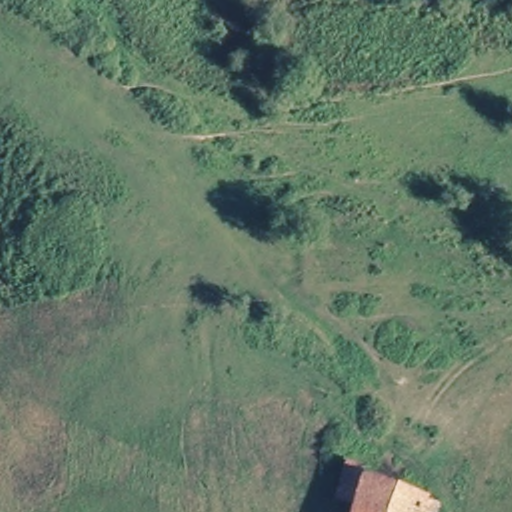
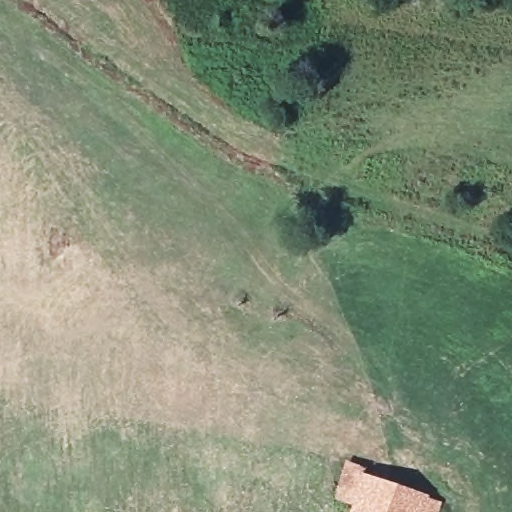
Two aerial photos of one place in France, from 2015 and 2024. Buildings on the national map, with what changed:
unchanged [(417,512),(339,512),(348,472),(433,498),(429,512),(418,509),(417,512)]

